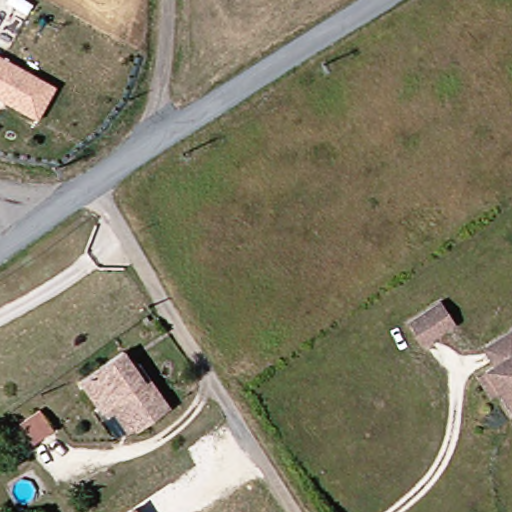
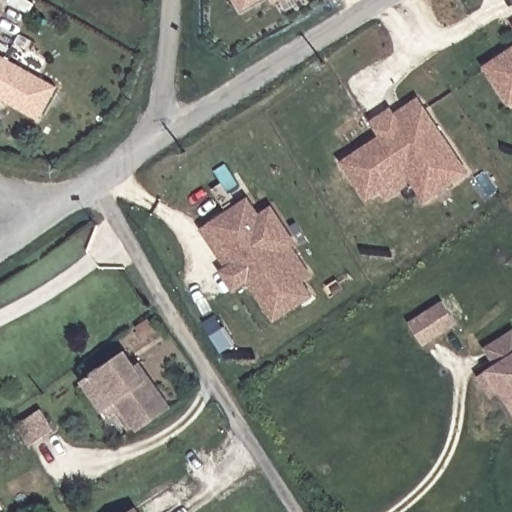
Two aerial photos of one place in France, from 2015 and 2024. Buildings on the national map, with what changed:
new [(242,8),(237,0),(257,0),(242,8)]
new [(273,1),(272,0),(276,0),(273,1)]
new [(510,104),(485,67),(512,49),(512,102),(510,104)]
unchanged [(40,118),(0,97),(0,54),(57,84),(40,118)]
new [(381,189),(366,198),(342,162),(381,135),(371,121),(390,109),(393,115),(417,99),(422,107),(447,144),(466,172),(450,184),(424,201),(411,181),(387,197),(381,189)]
new [(258,216),(271,207),(293,243),(290,245),(309,275),(301,280),(311,295),(273,320),(247,280),(233,290),(221,271),(227,267),(202,229),(210,223),(247,199),(258,216)]
unchanged [(444,304),(460,327),(427,351),(411,329),(444,304)]
unchanged [(486,376),(497,367),(485,350),(507,333),(512,339),(512,411),(503,397),(491,404),(476,383),(486,376)]
unchanged [(132,371),(139,367),(170,415),(137,438),(117,407),(100,418),(78,388),(124,359),(132,371)]
demolished [(40,412),(54,432),(28,449),(15,429),(40,412)]
unchanged [(129,512),(135,508),(138,512),(129,512)]

